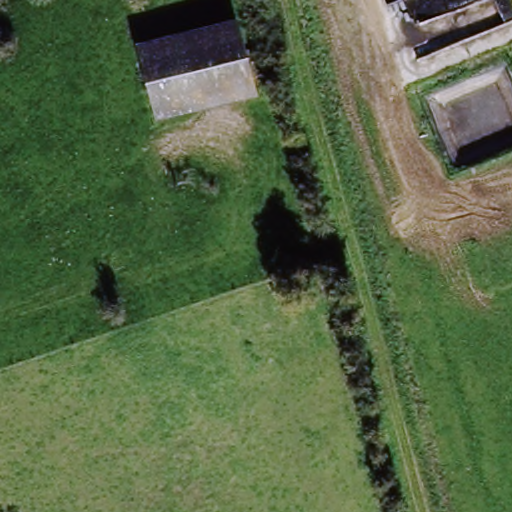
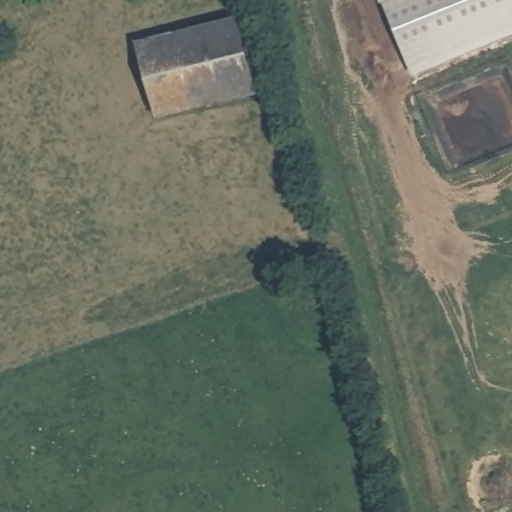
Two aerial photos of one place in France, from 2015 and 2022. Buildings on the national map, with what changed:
new [(379,0),(512,0),(512,36),(412,79),(379,0)]
unchanged [(235,14),(255,95),(155,119),(138,44),(235,14)]

